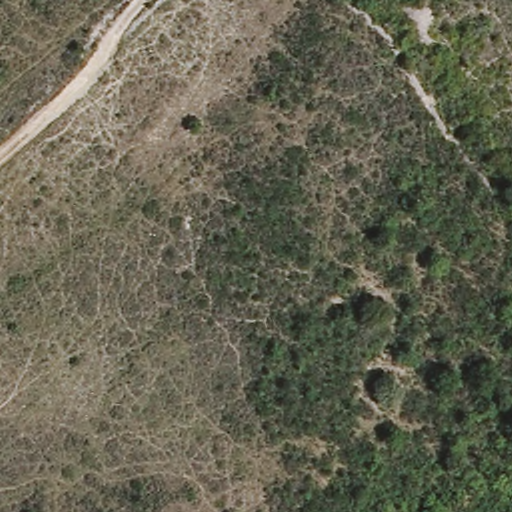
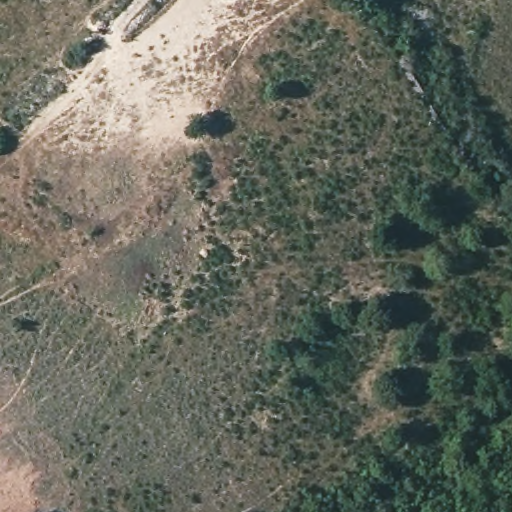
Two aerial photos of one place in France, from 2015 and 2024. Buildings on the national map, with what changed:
[]

